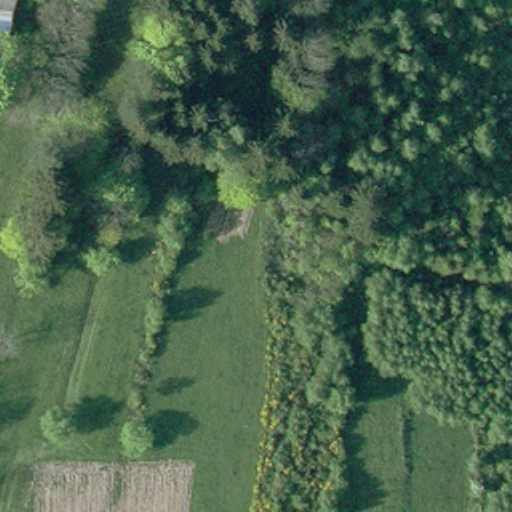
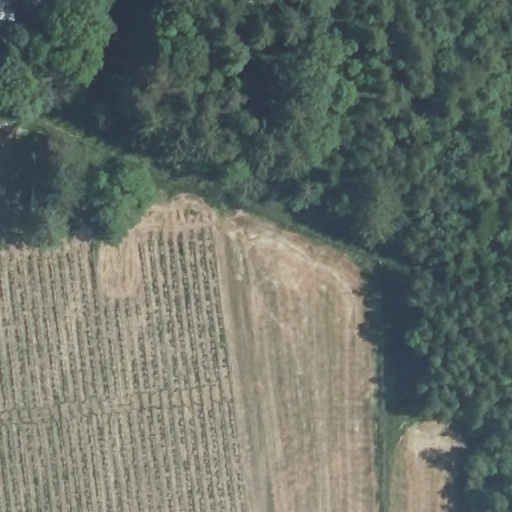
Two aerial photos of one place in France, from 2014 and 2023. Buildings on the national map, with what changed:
unchanged [(0,37),(0,0),(18,0),(10,39),(0,37)]

